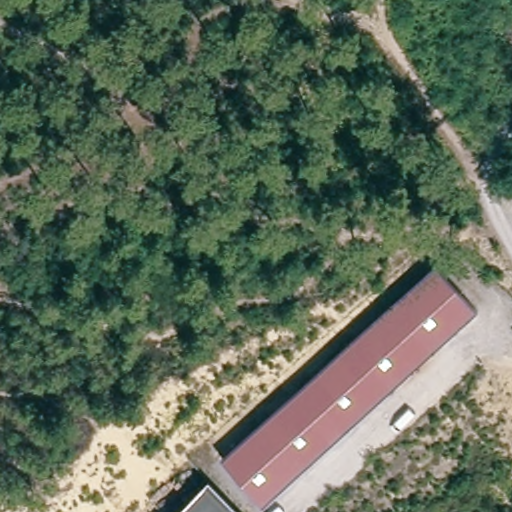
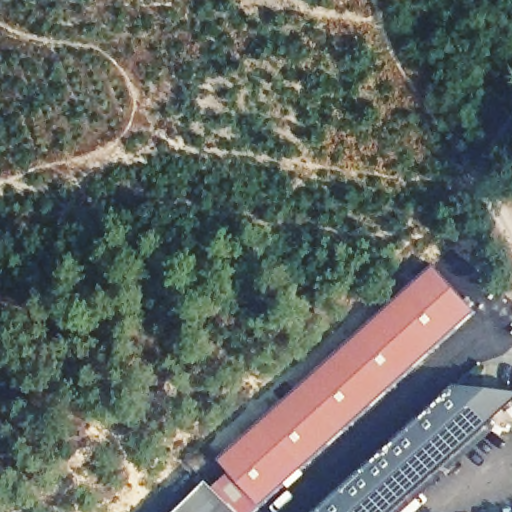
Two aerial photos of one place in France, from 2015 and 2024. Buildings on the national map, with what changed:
unchanged [(222,458),(435,263),(477,310),(265,505),(222,458)]
new [(459,385),(512,390),(512,431),(487,430),(395,512),(321,512),(459,385)]
unchanged [(207,478),(242,512),(174,512),(207,478)]

